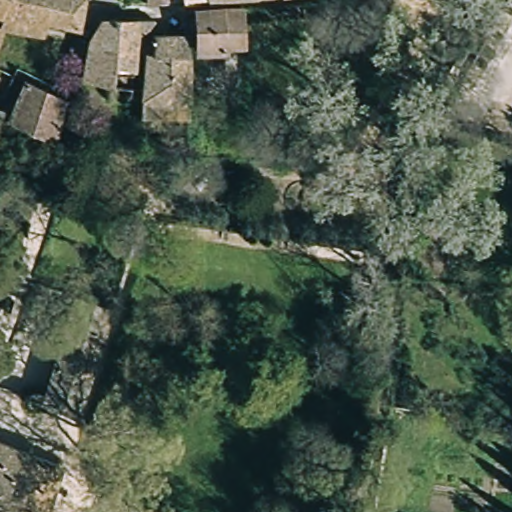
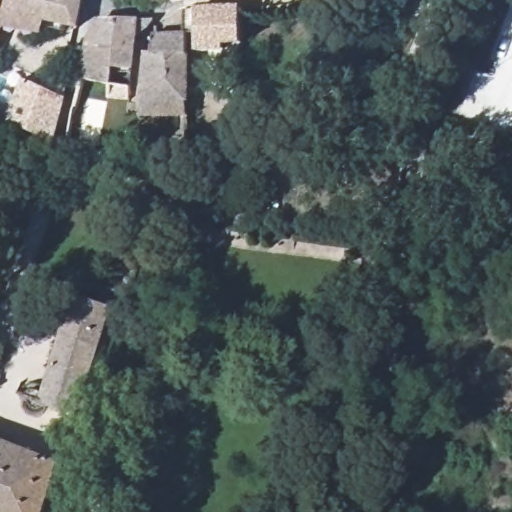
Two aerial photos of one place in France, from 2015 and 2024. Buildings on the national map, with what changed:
unchanged [(0,33),(0,0),(82,0),(77,27),(64,25),(61,36),(58,37),(3,25),(0,33)]
unchanged [(243,71),(221,70),(221,45),(193,46),(195,31),(183,30),(186,10),(198,9),(242,7),(243,71)]
unchanged [(111,78),(83,77),(101,18),(151,17),(151,24),(148,28),(144,31),(139,34),(134,34),(131,65),(113,64),(111,78)]
unchanged [(141,92),(143,53),(149,53),(151,36),(183,34),(186,90),(186,97),(186,114),(139,109),(141,92)]
unchanged [(6,120),(26,76),(65,94),(53,144),(6,120)]
unchanged [(49,277),(46,285),(29,280),(32,272),(49,277)]
unchanged [(109,303),(76,412),(40,401),(73,293),(109,303)]
unchanged [(44,512),(0,512),(0,442),(61,466),(44,512)]

